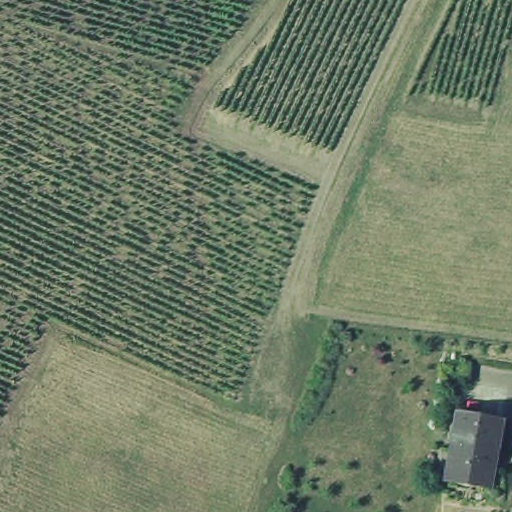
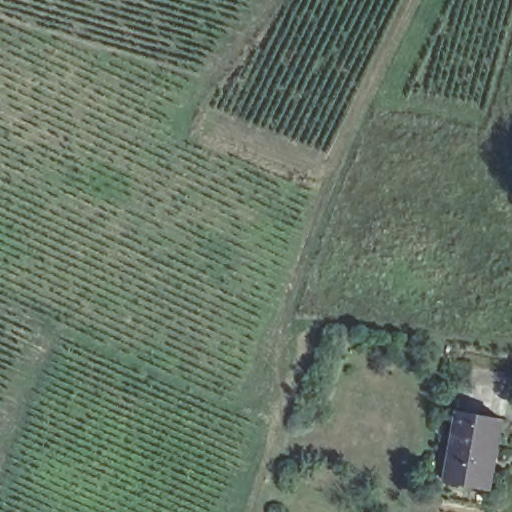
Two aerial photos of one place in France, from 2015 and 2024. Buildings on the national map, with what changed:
unchanged [(441,483),(452,412),(502,420),(493,471),(490,492),(464,487),(441,483)]

